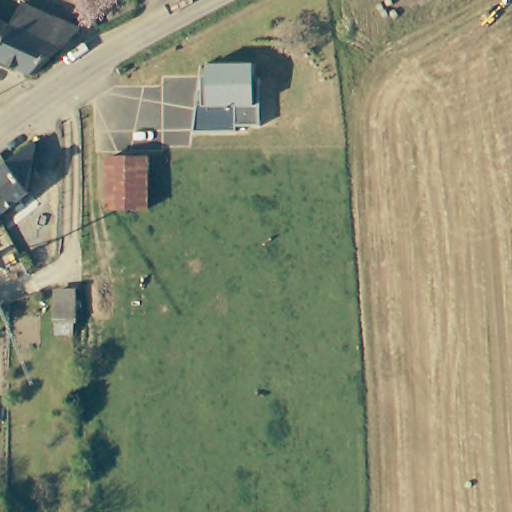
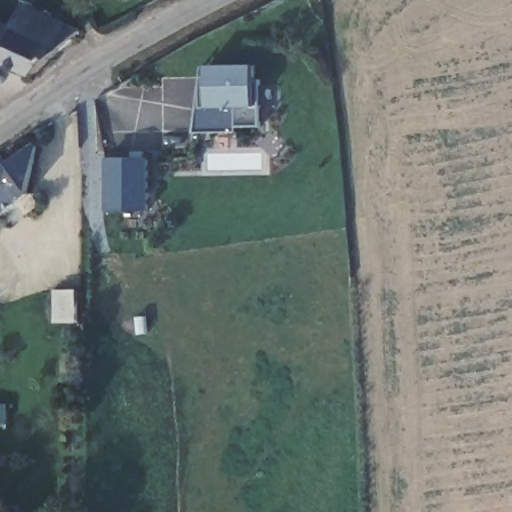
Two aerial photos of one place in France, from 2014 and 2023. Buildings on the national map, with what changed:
unchanged [(46,65),(35,72),(0,57),(0,16),(1,17),(16,23),(25,1),(41,9),(83,27),(46,65)]
unchanged [(191,118),(192,118),(196,95),(202,95),(202,79),(207,79),(207,54),(254,54),(254,67),(260,67),(260,115),(236,116),(236,121),(191,121),(191,118)]
unchanged [(0,165),(8,159),(14,169),(41,150),(45,154),(34,194),(36,200),(5,223),(0,216),(0,165)]
unchanged [(148,205),(109,205),(108,158),(147,157),(148,205)]
unchanged [(0,216),(5,223),(0,227),(0,216)]
unchanged [(53,288),(72,289),(71,328),(49,326),(53,288)]

